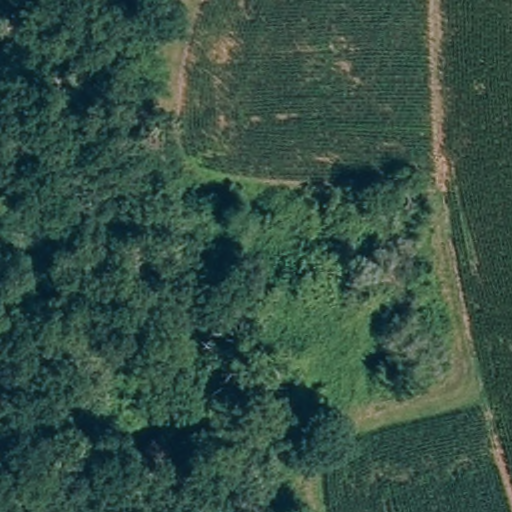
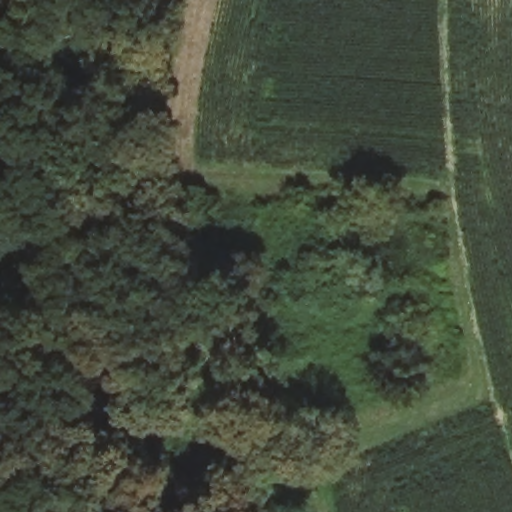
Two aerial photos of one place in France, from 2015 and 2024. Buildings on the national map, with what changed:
unchanged [(430,317),(400,324),(396,296),(424,290),(430,317)]
unchanged [(340,293),(338,308),(362,311),(358,397),(261,393),(263,360),(282,360),(282,371),(307,372),(309,292),(340,293)]
unchanged [(444,356),(424,361),(417,340),(436,336),(444,356)]

